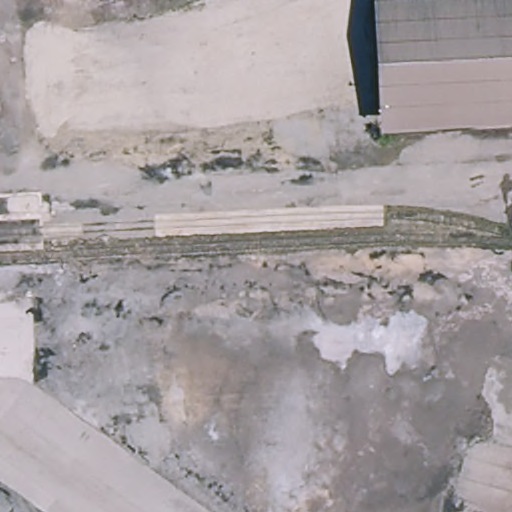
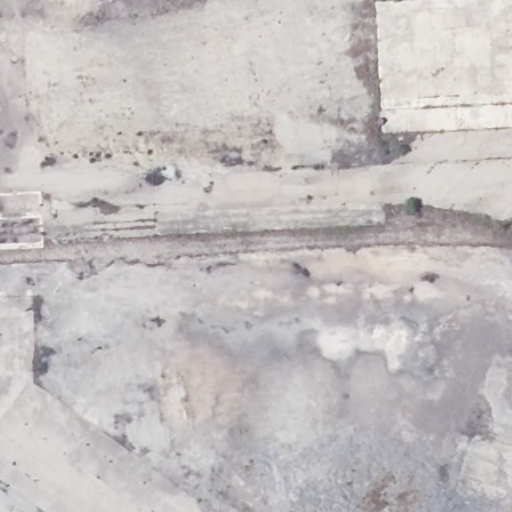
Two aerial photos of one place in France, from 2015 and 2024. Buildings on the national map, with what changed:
demolished [(376,102),(370,0),(512,0),(512,96),(376,102)]
unchanged [(146,362),(158,362),(158,372),(145,371),(146,362)]

